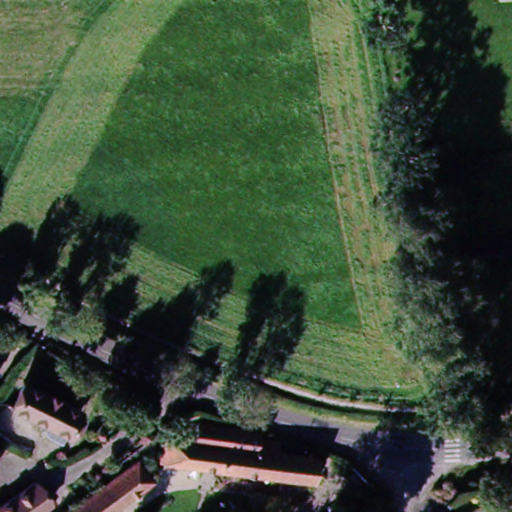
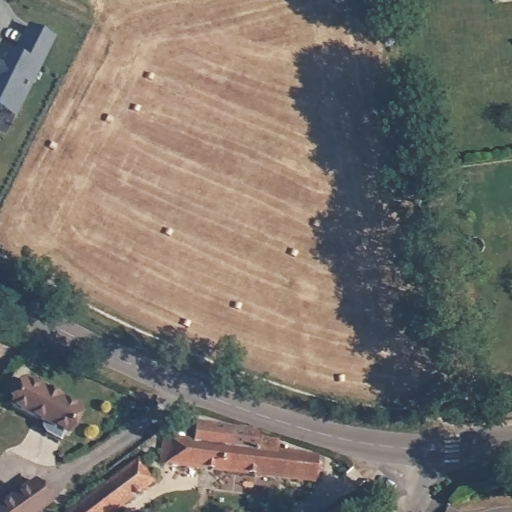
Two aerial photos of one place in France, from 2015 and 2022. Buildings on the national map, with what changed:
new [(0,55),(2,51),(15,58),(29,30),(53,42),(40,70),(15,119),(0,111),(0,55)]
unchanged [(60,433),(5,407),(16,382),(71,409),(60,433)]
unchanged [(163,447),(192,451),(195,435),(255,442),(254,451),(274,454),(274,463),(314,468),(312,490),(159,471),(163,447)]
unchanged [(154,486),(119,512),(78,512),(140,466),(154,486)]
unchanged [(55,500),(39,512),(0,512),(43,482),(55,500)]

